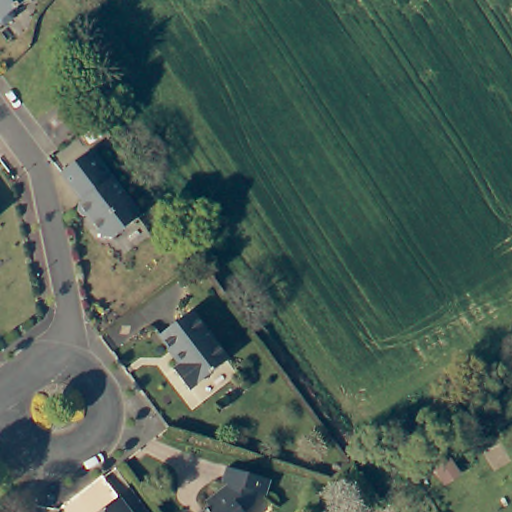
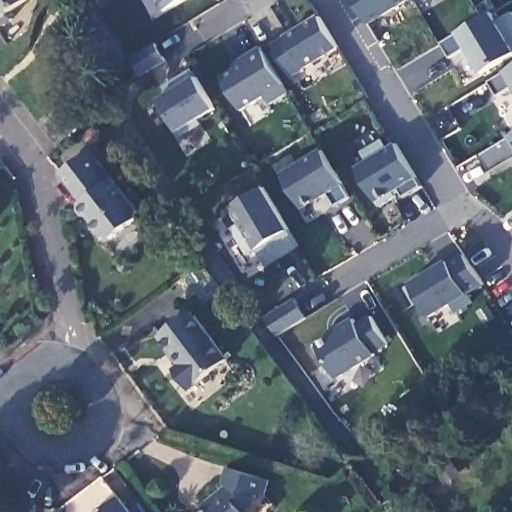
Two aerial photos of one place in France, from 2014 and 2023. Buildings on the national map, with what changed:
unchanged [(0,11),(2,15),(2,18),(0,20),(0,0),(16,0),(0,11)]
new [(166,11),(160,0),(185,0),(166,11)]
new [(368,23),(355,0),(407,0),(368,23)]
new [(493,12),(498,21),(512,13),(512,56),(483,73),(467,48),(450,58),(441,43),(493,12)]
new [(320,16),(339,47),(290,76),(272,46),(320,16)]
new [(155,42),(165,59),(140,74),(130,57),(155,42)]
new [(245,62),(242,57),(261,46),(288,92),(270,104),(265,96),(241,110),(221,77),(245,62)]
new [(512,68),(512,87),(498,96),(489,82),(512,68)]
new [(168,94),(164,86),(193,69),(216,108),(199,118),(201,122),(180,135),(159,99),(168,94)]
new [(512,135),(512,159),(490,172),(479,155),(512,135)]
new [(380,206),(356,168),(367,161),(362,152),(383,139),(388,148),(397,143),(422,186),(404,197),(401,193),(396,196),(380,206)]
new [(323,150),(351,197),(336,206),(328,193),(302,208),(282,175),(323,150)]
unchanged [(99,165),(103,162),(141,214),(140,221),(114,240),(106,240),(92,219),(86,218),(81,212),(82,205),(90,200),(84,192),(81,195),(65,173),(92,154),(99,165)]
new [(264,187),(299,246),(266,266),(256,250),(247,255),(232,228),(240,223),(230,207),(264,187)]
new [(485,285),(467,295),(472,304),(456,314),(452,304),(428,317),(408,283),(446,261),(463,254),(485,285)]
new [(295,299),(306,318),(277,335),(263,318),(295,299)]
unchanged [(190,391),(174,371),(182,365),(160,336),(192,312),(229,361),(190,391)]
new [(388,346),(376,356),(337,381),(327,363),(322,365),(310,345),(352,320),(355,324),(370,315),(388,346)]
unchanged [(450,458),(460,471),(444,481),(435,468),(450,458)]
unchanged [(207,503),(227,489),(227,485),(221,484),(226,467),(272,482),(267,497),(258,494),(254,508),(246,512),(206,512),(211,509),(207,503)]
unchanged [(129,512),(101,512),(119,499),(129,512)]

